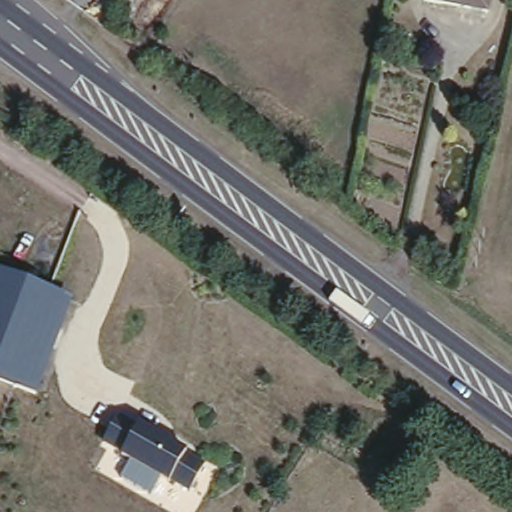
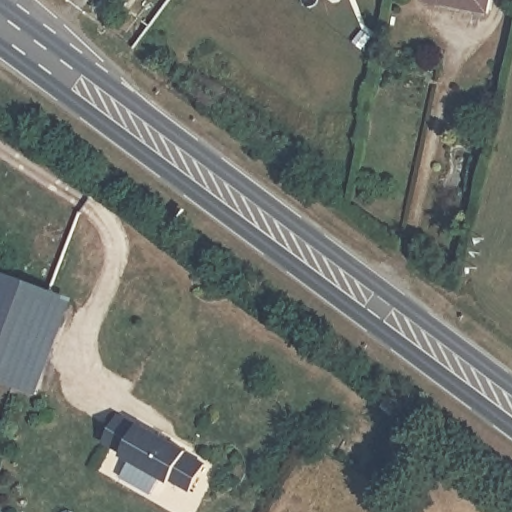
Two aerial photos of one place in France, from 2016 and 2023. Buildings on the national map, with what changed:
unchanged [(443,0),(488,0),(485,11),(443,0)]
unchanged [(38,389),(0,378),(0,265),(67,285),(38,389)]
unchanged [(182,448),(205,461),(190,488),(164,474),(151,492),(121,474),(131,457),(125,454),(102,436),(119,409),(182,448)]

